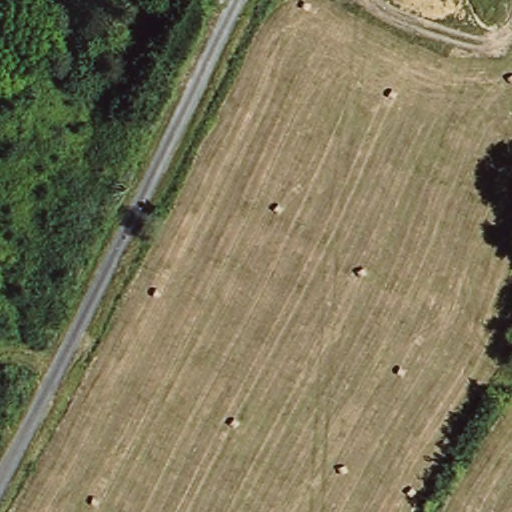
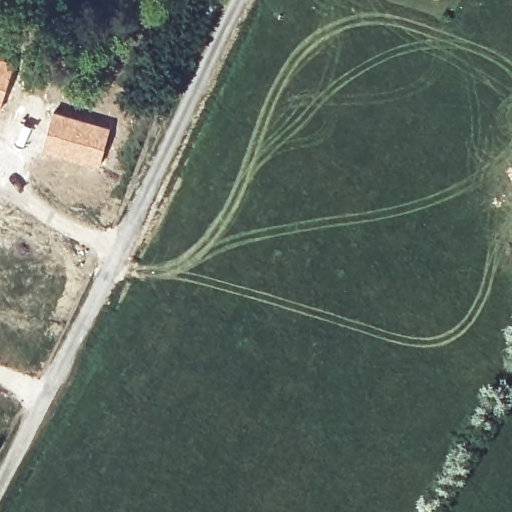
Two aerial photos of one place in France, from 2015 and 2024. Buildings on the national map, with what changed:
new [(15,62),(0,107),(0,58),(15,62)]
new [(52,110),(111,125),(97,174),(37,159),(52,110)]

